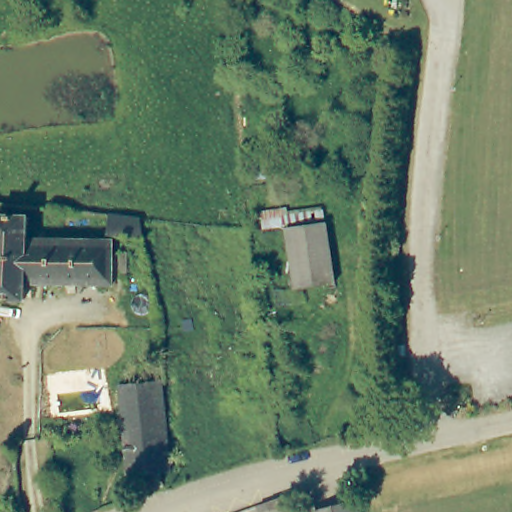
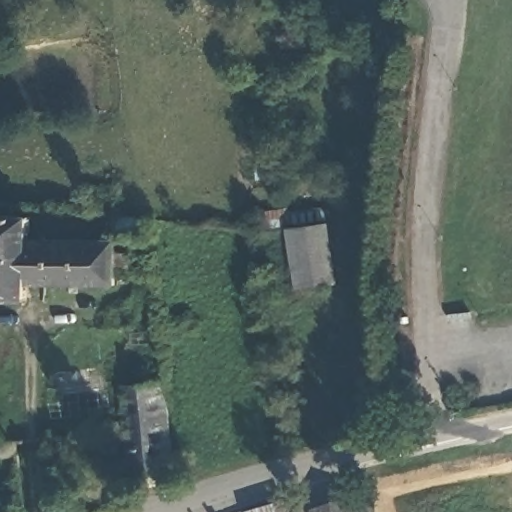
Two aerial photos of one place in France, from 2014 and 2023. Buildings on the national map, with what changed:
unchanged [(291,272),(283,211),(324,205),(332,265),(291,272)]
unchanged [(143,217),(147,239),(117,239),(111,239),(110,217),(143,217)]
unchanged [(31,224),(30,241),(66,242),(67,232),(83,232),(83,243),(117,244),(117,288),(28,287),(27,306),(0,305),(0,222),(31,224)]
unchanged [(164,373),(176,461),(167,462),(169,477),(139,481),(136,461),(132,461),(127,423),(121,379),(164,373)]
unchanged [(355,512),(333,512),(354,506),(355,512)]

